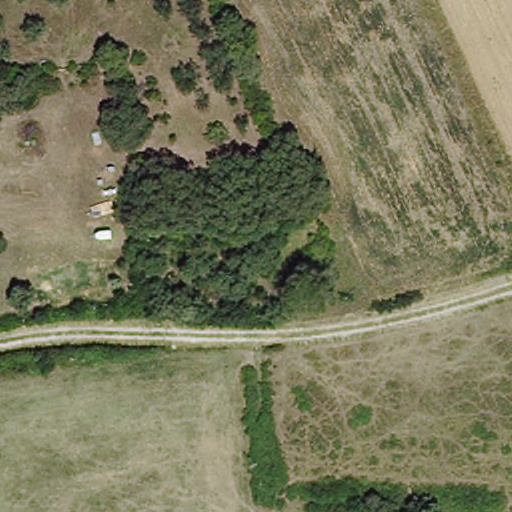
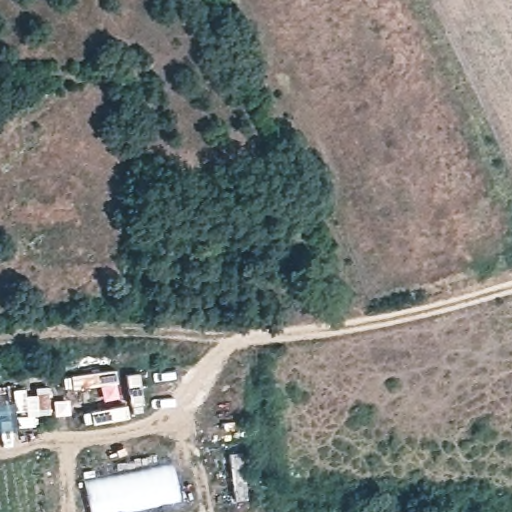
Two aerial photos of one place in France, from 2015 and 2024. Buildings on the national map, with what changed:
new [(90,512),(84,482),(172,462),(180,502),(131,512),(90,512)]

